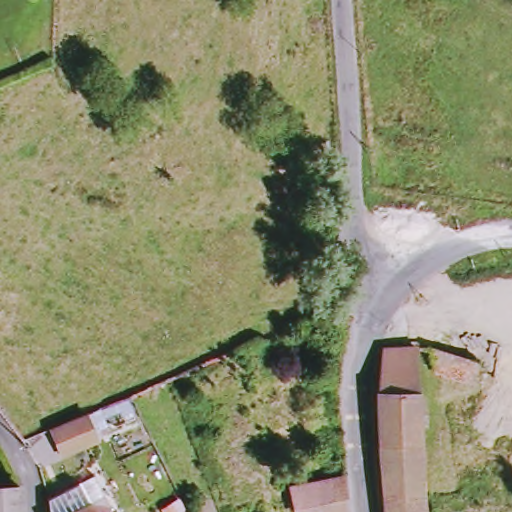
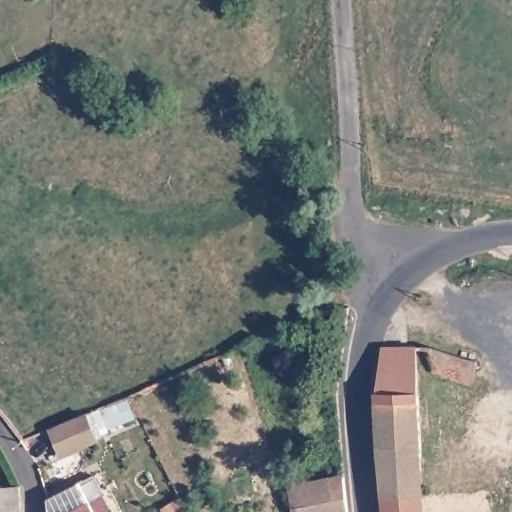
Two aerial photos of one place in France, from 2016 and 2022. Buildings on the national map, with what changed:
unchanged [(416,347),(424,497),(385,497),(380,447),(379,381),(383,349),(416,347)]
unchanged [(474,382),(433,370),(433,347),(479,361),(474,382)]
unchanged [(85,417),(97,443),(72,454),(60,428),(85,417)]
unchanged [(301,508),(296,487),(350,476),(353,512),(331,512),(331,502),(301,508)]
unchanged [(85,481),(95,502),(101,512),(56,512),(55,498),(85,481)]
unchanged [(21,512),(0,512),(0,486),(20,486),(21,512)]
unchanged [(425,512),(386,512),(385,497),(424,497),(425,512)]

